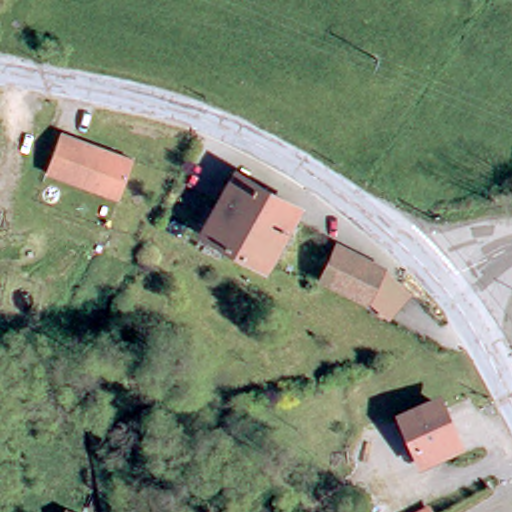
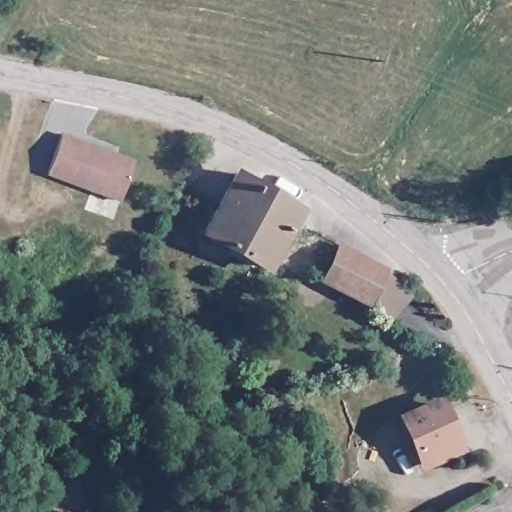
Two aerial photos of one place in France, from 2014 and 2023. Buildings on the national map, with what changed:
unchanged [(140,164),(125,203),(53,176),(68,137),(140,164)]
unchanged [(233,177),(296,212),(265,268),(202,232),(233,177)]
unchanged [(385,273),(385,274),(387,276),(412,299),(390,323),(372,307),(370,306),(369,307),(322,285),(338,250),(385,273)]
unchanged [(455,452),(427,463),(409,419),(445,404),(458,436),(463,448),(455,452)]

